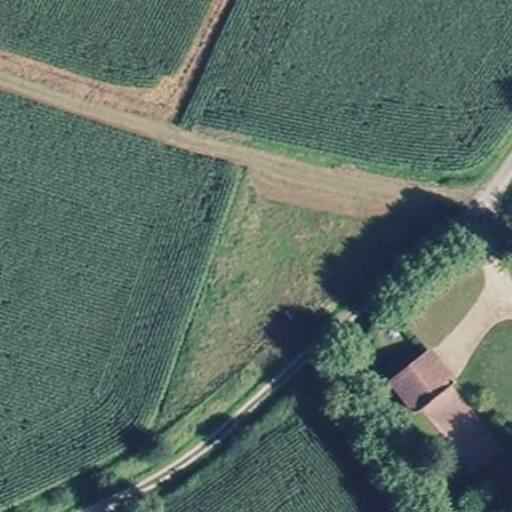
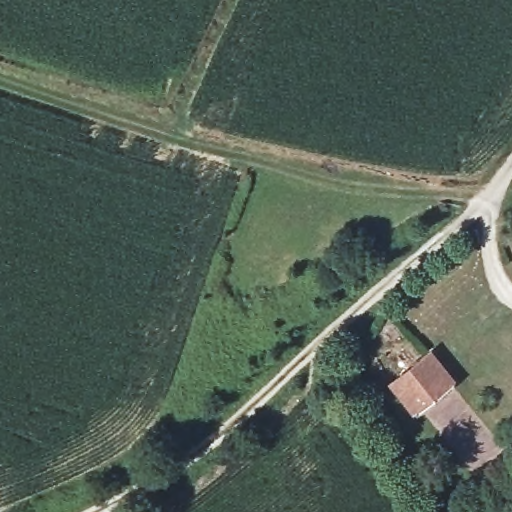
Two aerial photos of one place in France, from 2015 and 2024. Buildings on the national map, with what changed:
unchanged [(390,386),(426,355),(453,387),(418,417),(390,386)]

